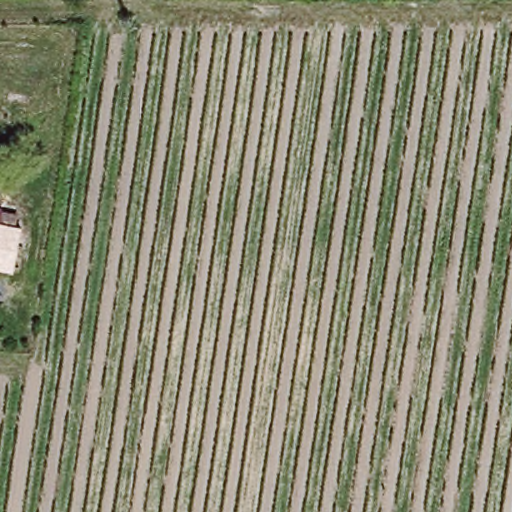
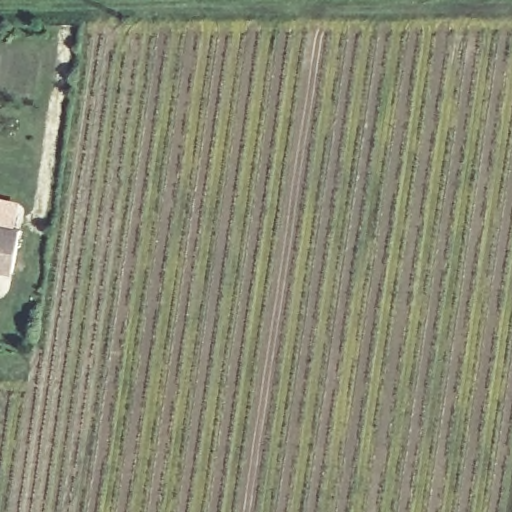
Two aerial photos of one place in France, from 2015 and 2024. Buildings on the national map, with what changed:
unchanged [(9,273),(0,271),(0,215),(11,217),(9,229),(17,231),(14,247),(19,248),(14,270),(9,269),(9,273)]

